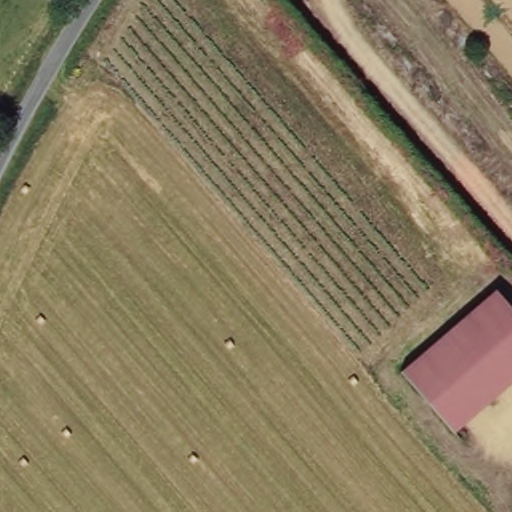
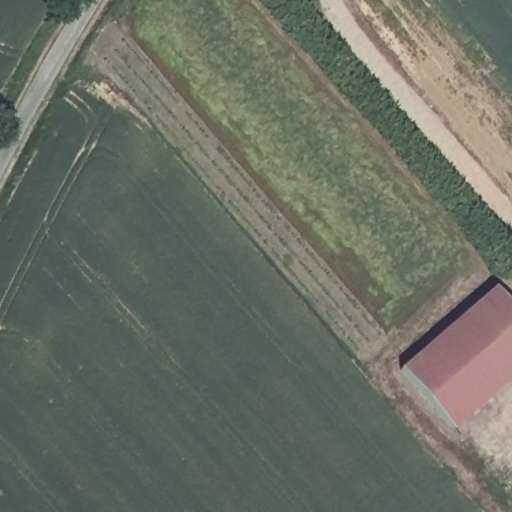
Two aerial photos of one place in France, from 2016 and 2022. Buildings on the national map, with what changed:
unchanged [(497,286),(512,304),(512,379),(454,429),(403,369),(497,286)]

